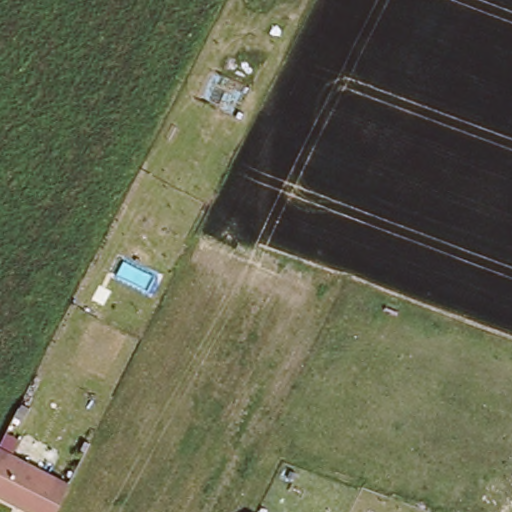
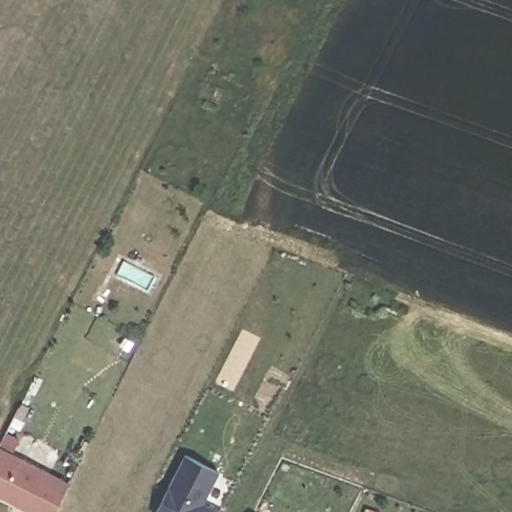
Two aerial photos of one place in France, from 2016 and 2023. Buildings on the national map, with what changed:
unchanged [(68,481),(51,512),(29,512),(0,496),(0,447),(68,481)]
new [(184,457),(219,473),(203,505),(219,512),(156,512),(184,457)]

